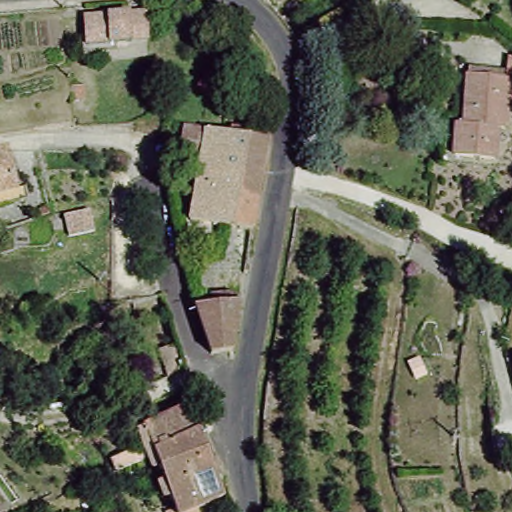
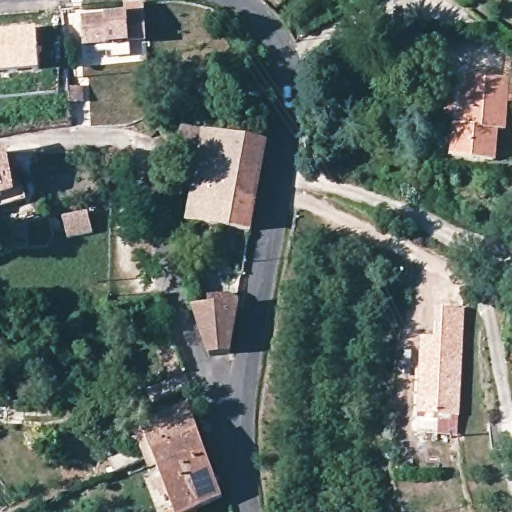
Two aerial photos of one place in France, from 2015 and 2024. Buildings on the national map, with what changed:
unchanged [(131,15),(133,43),(91,45),(89,17),(131,15)]
new [(40,71),(0,74),(0,30),(36,27),(40,71)]
unchanged [(461,121),(470,121),(471,74),(512,79),(512,105),(510,124),(501,125),(497,159),(459,156),(461,121)]
unchanged [(260,175),(198,166),(200,160),(176,156),(183,127),(267,138),(260,175)]
unchanged [(0,209),(0,150),(3,149),(20,204),(0,209)]
unchanged [(260,177),(251,228),(188,219),(198,166),(260,175),(260,177)]
unchanged [(512,205),(512,235),(510,241),(480,231),(490,199),(512,205)]
new [(86,215),(90,236),(66,242),(61,221),(86,215)]
unchanged [(138,246),(137,226),(143,225),(146,245),(138,246)]
unchanged [(241,306),(231,356),(209,359),(196,311),(241,306)]
new [(416,377),(421,337),(439,338),(439,321),(437,321),(437,308),(464,309),(461,397),(458,434),(412,432),(416,377)]
unchanged [(146,448),(136,424),(183,405),(193,429),(146,448)]
unchanged [(166,504),(146,448),(193,429),(216,491),(188,502),(193,512),(158,512),(156,507),(166,504)]

